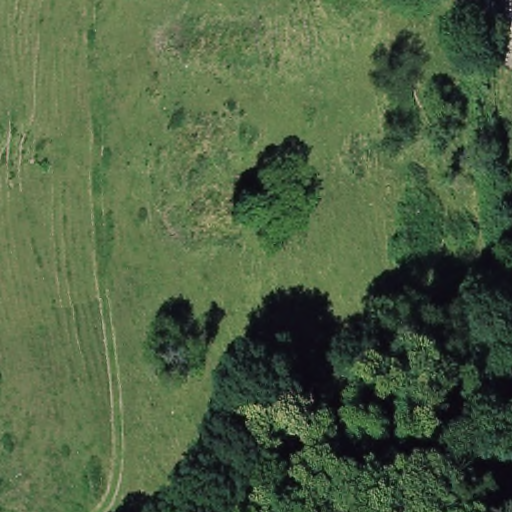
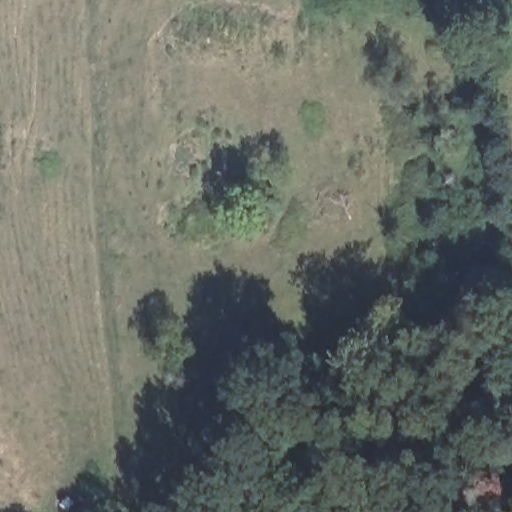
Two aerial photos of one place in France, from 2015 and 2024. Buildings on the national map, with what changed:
[]

